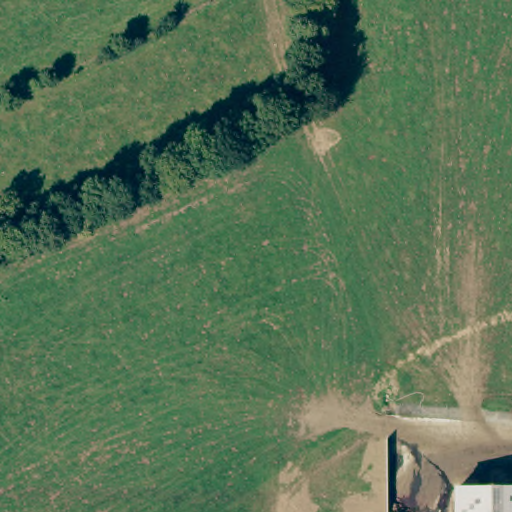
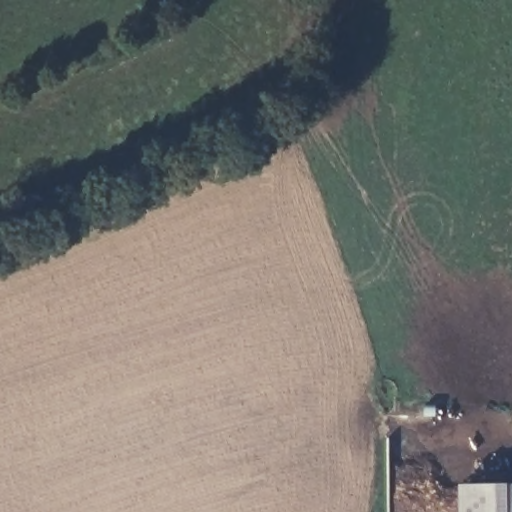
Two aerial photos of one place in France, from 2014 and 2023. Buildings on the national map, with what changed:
unchanged [(458,485),(512,485),(512,512),(458,512),(458,485)]

